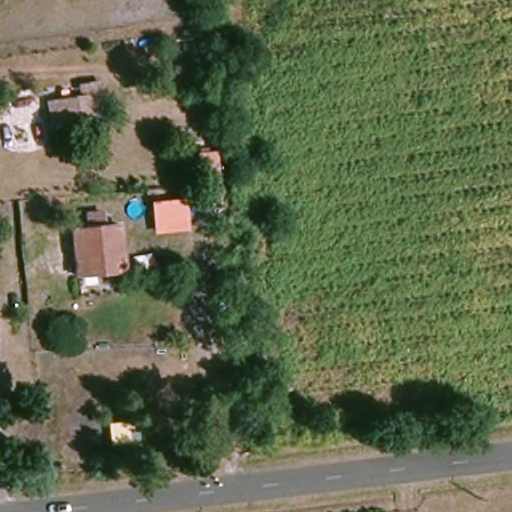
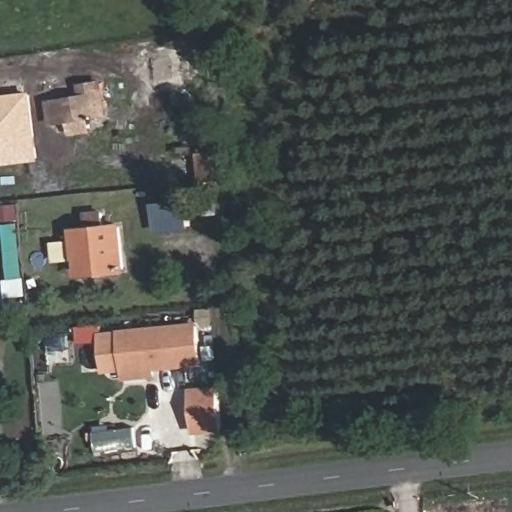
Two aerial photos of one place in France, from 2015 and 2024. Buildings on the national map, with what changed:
new [(38,161),(0,165),(0,96),(30,92),(38,161)]
unchanged [(57,117),(56,97),(94,92),(98,111),(57,117)]
unchanged [(185,198),(189,230),(154,234),(151,201),(185,198)]
new [(26,295),(6,298),(3,280),(10,278),(1,224),(15,222),(23,276),(26,295)]
unchanged [(66,236),(114,227),(124,273),(74,278),(66,236)]
new [(193,325),(197,363),(121,370),(117,333),(193,325)]
new [(214,387),(218,430),(191,432),(187,390),(214,387)]

